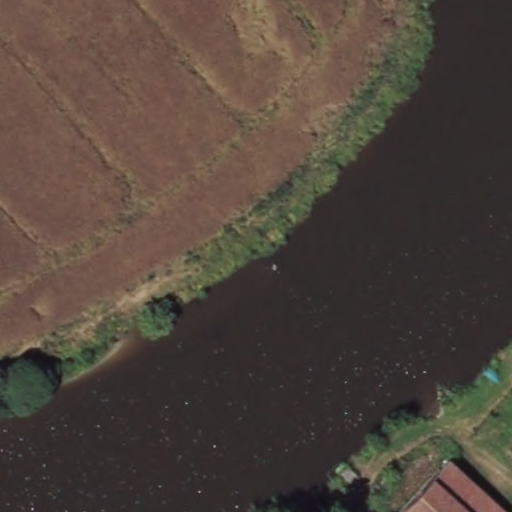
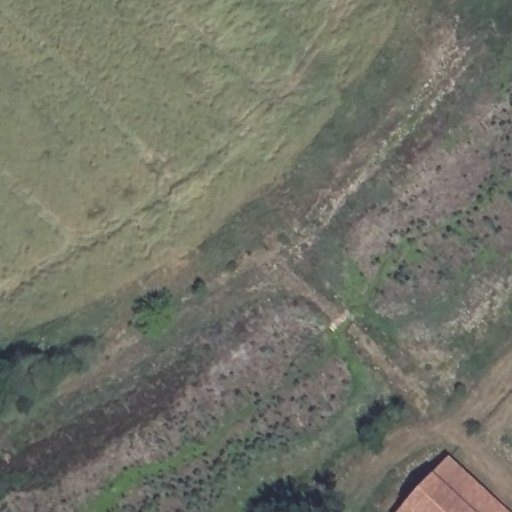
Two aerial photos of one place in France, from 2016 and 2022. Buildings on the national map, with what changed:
unchanged [(512,512),(398,512),(452,456),(512,509),(512,512)]

